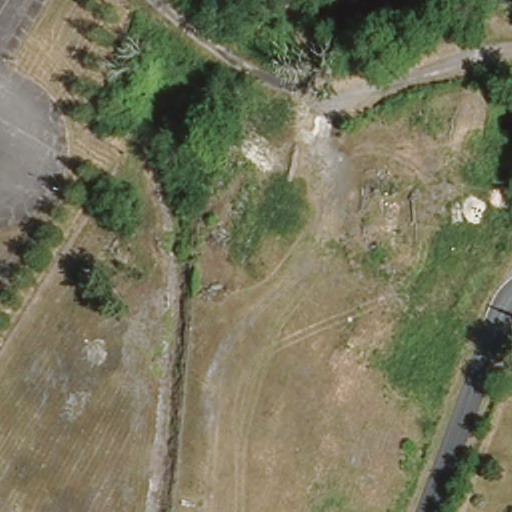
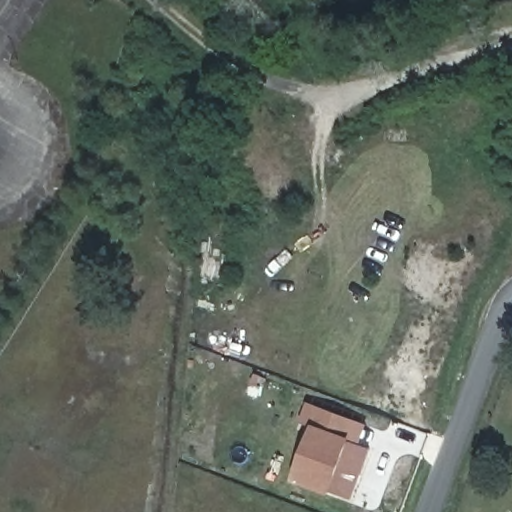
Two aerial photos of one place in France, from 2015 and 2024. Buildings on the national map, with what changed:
new [(294,476),(314,426),(300,420),(307,402),(321,407),(336,413),(364,424),(356,443),(368,447),(357,473),(348,498),(338,494),(294,476)]

